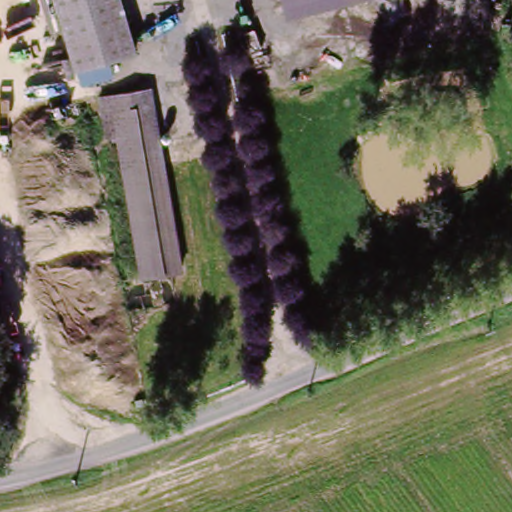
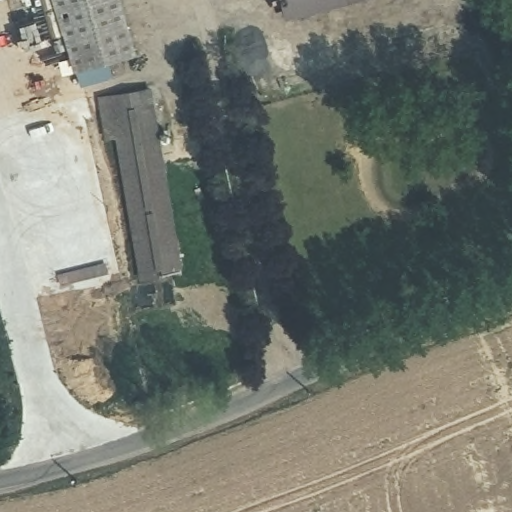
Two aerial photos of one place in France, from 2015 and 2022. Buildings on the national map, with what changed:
unchanged [(135,52),(105,59),(112,78),(81,87),(75,72),(54,0),(120,0),(135,52)]
unchanged [(287,23),(281,0),(379,0),(287,23)]
unchanged [(506,0),(512,0),(512,25),(506,0)]
unchanged [(190,274),(151,282),(105,103),(146,92),(190,274)]

